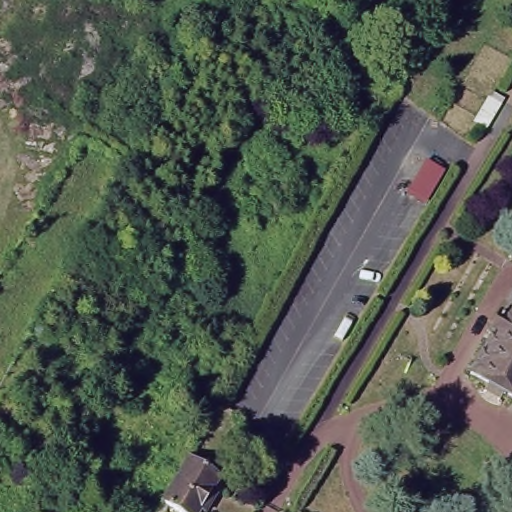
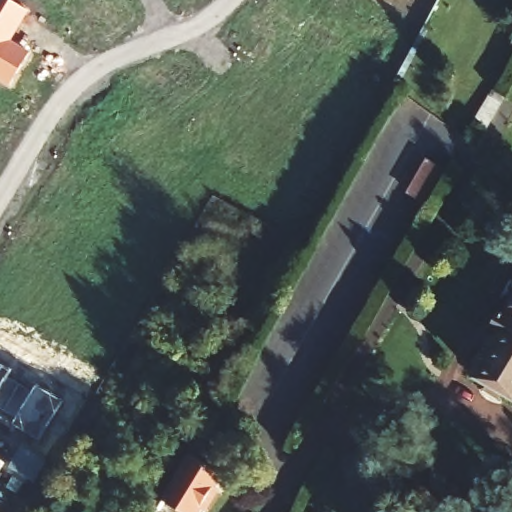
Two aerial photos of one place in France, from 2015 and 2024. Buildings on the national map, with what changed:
new [(9,86),(0,80),(0,0),(10,0),(29,11),(11,41),(29,51),(9,86)]
unchanged [(494,327),(512,294),(512,389),(510,394),(490,384),(495,376),(479,367),(500,329),(494,327)]
new [(7,376),(31,390),(35,383),(63,400),(40,440),(12,423),(16,416),(0,407),(0,363),(11,369),(7,376)]
unchanged [(224,477),(221,482),(231,487),(218,512),(205,512),(205,511),(204,512),(180,512),(157,499),(177,467),(186,449),(226,472),(224,477)]
demolished [(149,512),(152,506),(163,512),(149,512)]

